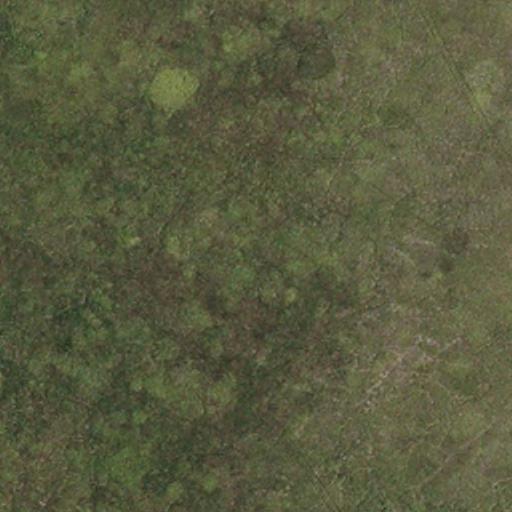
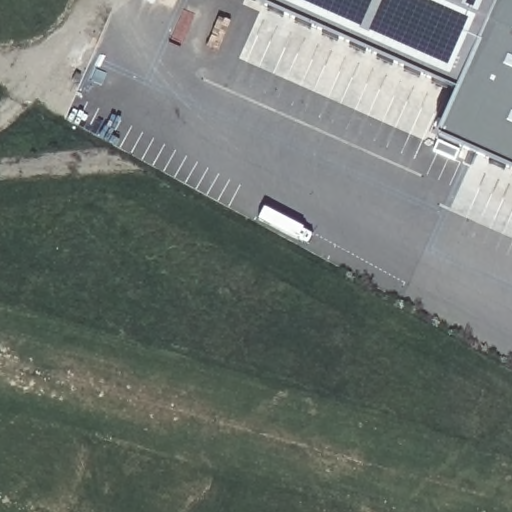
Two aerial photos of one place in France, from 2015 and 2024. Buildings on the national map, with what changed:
new [(512,162),(438,130),(457,85),(262,0),(512,0),(512,162)]

